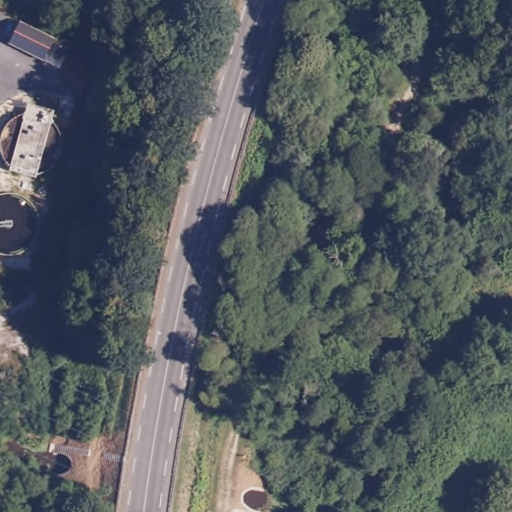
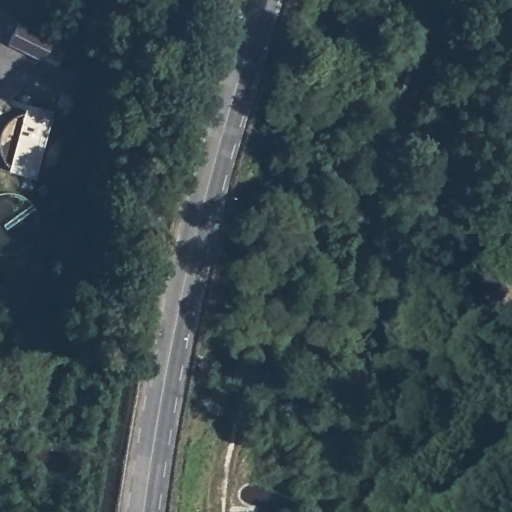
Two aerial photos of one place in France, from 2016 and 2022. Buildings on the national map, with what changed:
unchanged [(20,21),(54,40),(44,61),(9,43),(20,21)]

